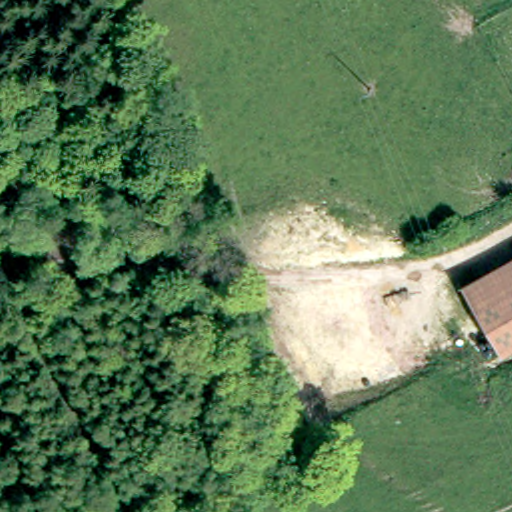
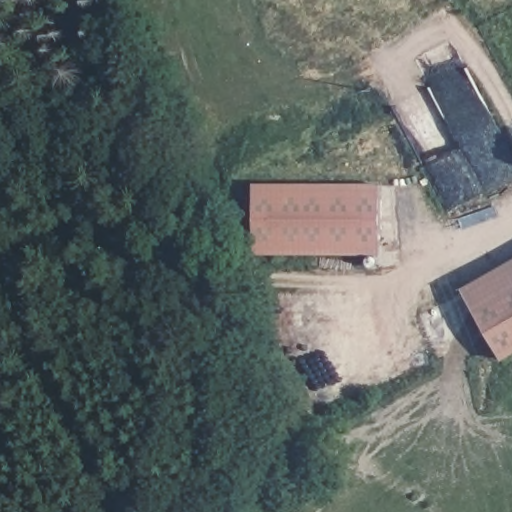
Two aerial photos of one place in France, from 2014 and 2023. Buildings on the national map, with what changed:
new [(380,255),(253,254),(255,181),(381,182),(380,255)]
unchanged [(461,288),(512,259),(512,353),(501,359),(461,288)]

